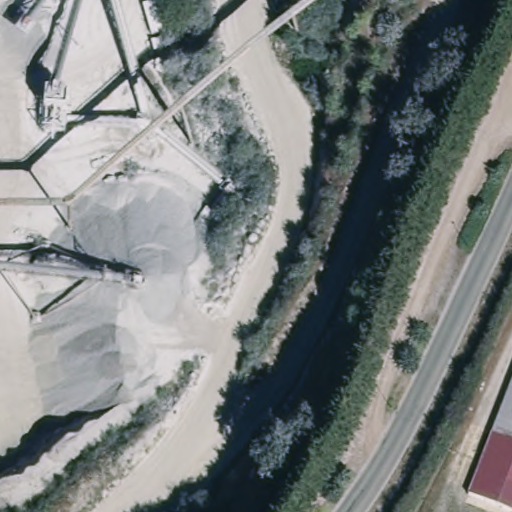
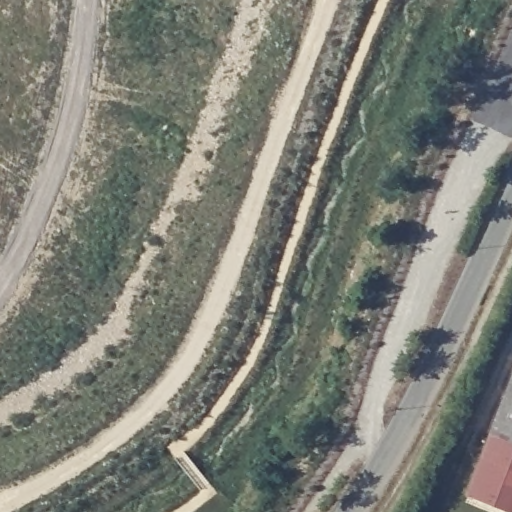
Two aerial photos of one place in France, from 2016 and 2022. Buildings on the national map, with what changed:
unchanged [(512,399),(512,442),(497,436),(512,399)]
unchanged [(512,511),(473,496),(497,436),(512,442),(512,511)]

